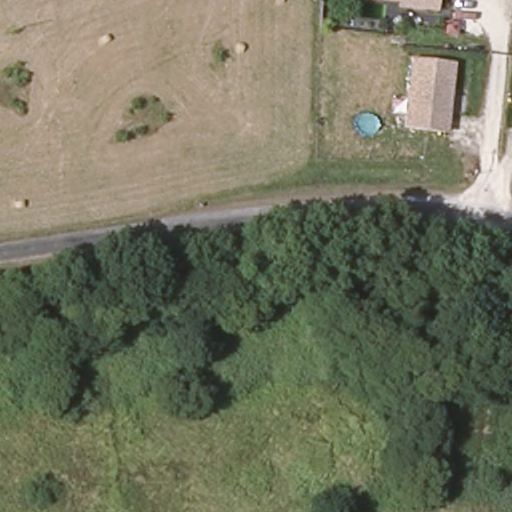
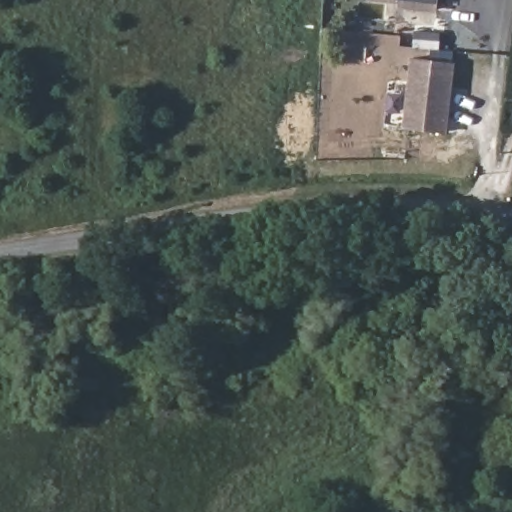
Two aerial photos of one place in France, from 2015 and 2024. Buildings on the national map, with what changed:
unchanged [(392,0),(437,0),(437,4),(392,0)]
unchanged [(447,59),(440,129),(401,124),(408,55),(447,59)]

